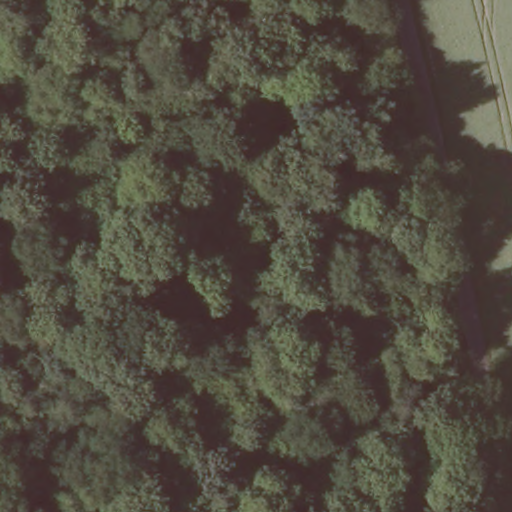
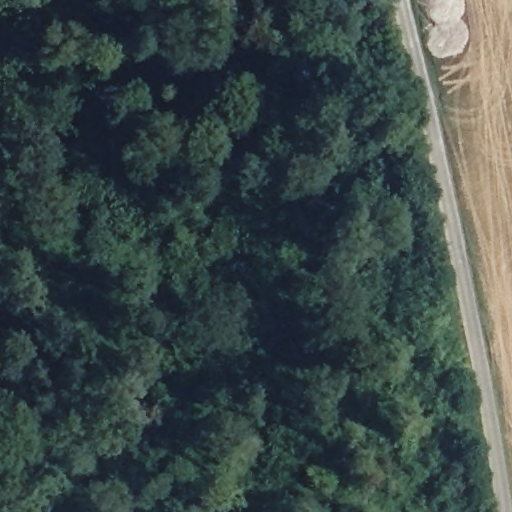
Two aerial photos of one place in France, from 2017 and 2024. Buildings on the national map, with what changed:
unchanged [(240,113),(222,117),(214,115),(213,106),(217,106),(215,91),(236,88),(240,113)]

